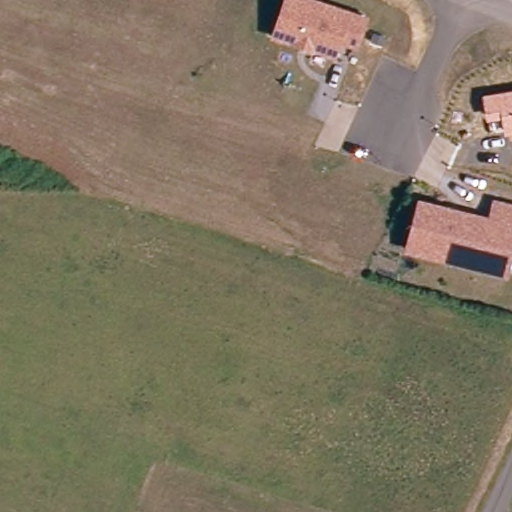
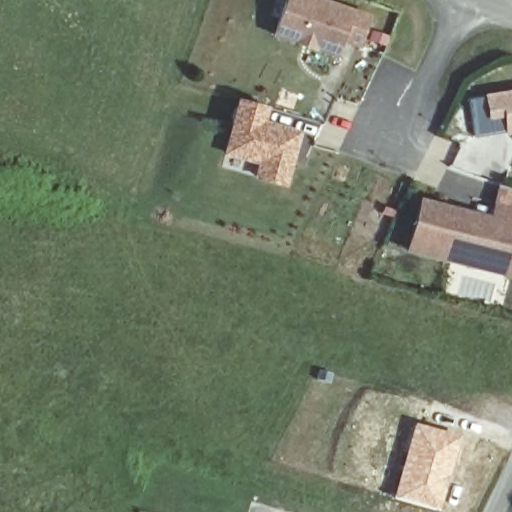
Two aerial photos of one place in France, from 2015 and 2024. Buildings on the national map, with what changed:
unchanged [(368,15),(357,49),(339,42),(334,59),(271,40),(283,0),(323,0),(368,15)]
unchanged [(499,118),(484,120),(482,94),(512,89),(512,135),(502,137),(499,118)]
new [(270,107),(266,122),(303,132),(286,190),(252,180),(257,165),(222,155),(237,99),(270,107)]
unchanged [(405,245),(418,198),(489,217),(493,200),(512,205),(512,236),(509,245),(502,272),(477,265),(405,245)]
new [(412,421),(457,433),(450,465),(436,510),(391,497),(412,421)]

